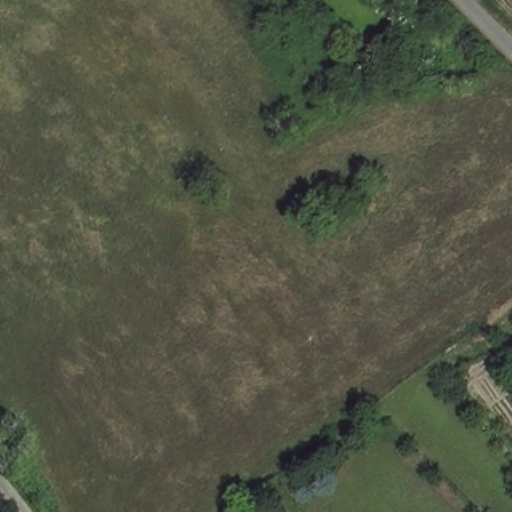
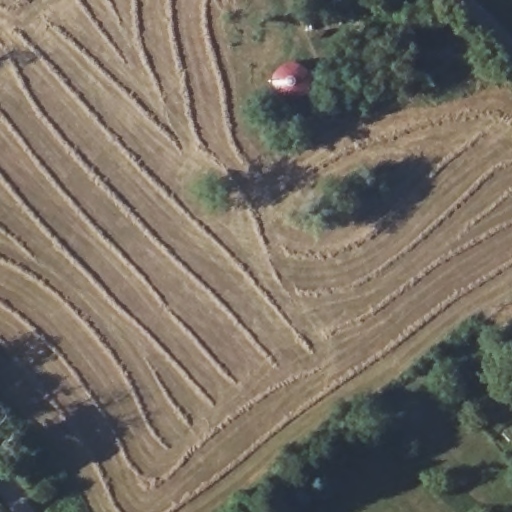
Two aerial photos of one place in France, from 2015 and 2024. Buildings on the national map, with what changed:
unchanged [(390,6),(384,0),(399,0),(390,6)]

